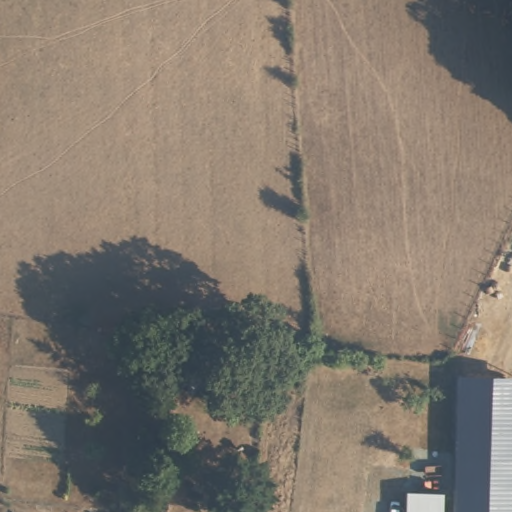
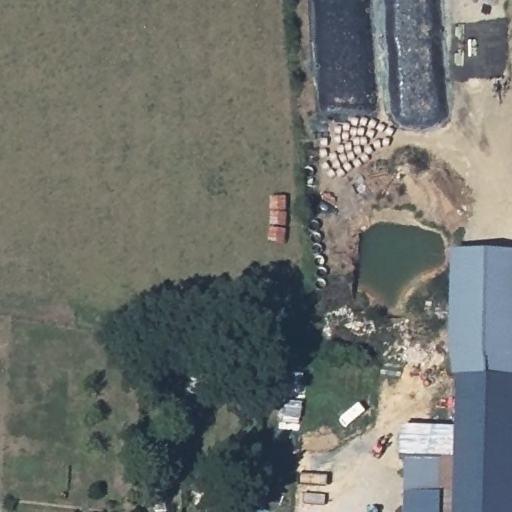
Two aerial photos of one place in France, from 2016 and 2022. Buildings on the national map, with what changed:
new [(452,359),(449,355),(452,250),(512,251),(512,378),(456,378),(453,378),(452,359)]
unchanged [(404,458),(453,457),(456,378),(512,378),(512,512),(402,512),(404,458)]

